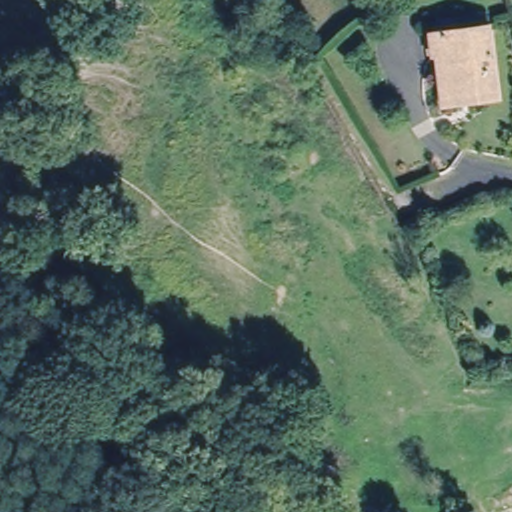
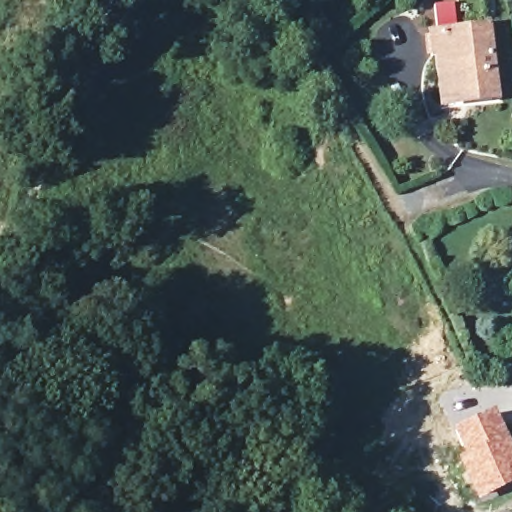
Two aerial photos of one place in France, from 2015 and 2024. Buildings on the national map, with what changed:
unchanged [(434,59),(432,39),(488,32),(498,103),(477,105),(443,109),(437,59),(434,59)]
new [(494,409),(512,446),(512,483),(476,501),(454,454),(457,452),(449,431),(494,409)]

